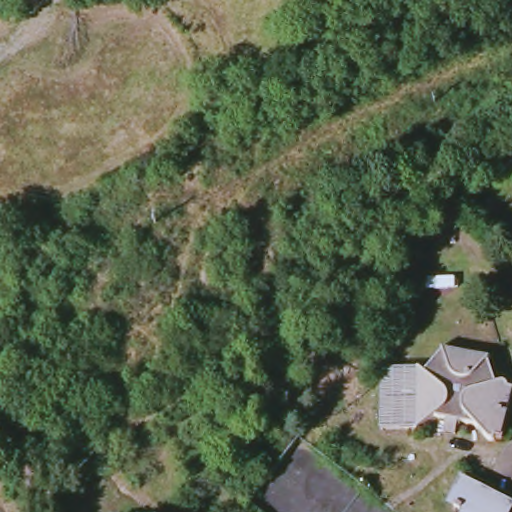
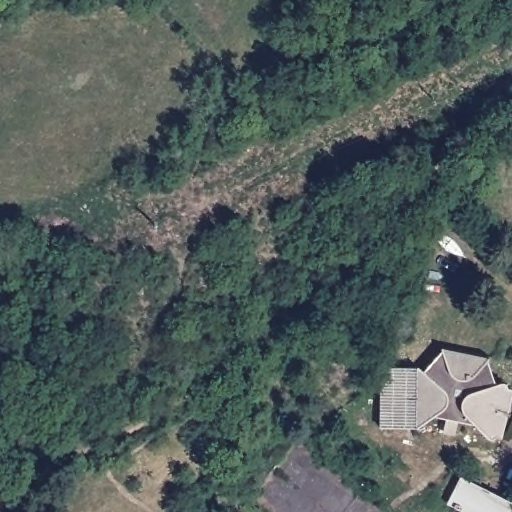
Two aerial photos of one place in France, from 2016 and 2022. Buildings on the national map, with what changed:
unchanged [(491,444),(481,435),(441,424),(422,439),(419,437),(423,434),(391,429),(393,414),(399,370),(429,375),(427,373),(429,371),(434,378),(456,360),(454,356),(456,355),(459,359),(497,369),(500,365),(502,367),(499,371),(502,381),(506,395),(508,394),(509,394),(512,393),(512,429),(510,436),(508,444),(511,445),(510,448),(506,447),(505,450),(501,452),(491,444)]
unchanged [(453,509),(466,479),(483,485),(479,494),(512,507),(512,509),(510,512),(460,512),(453,509)]

